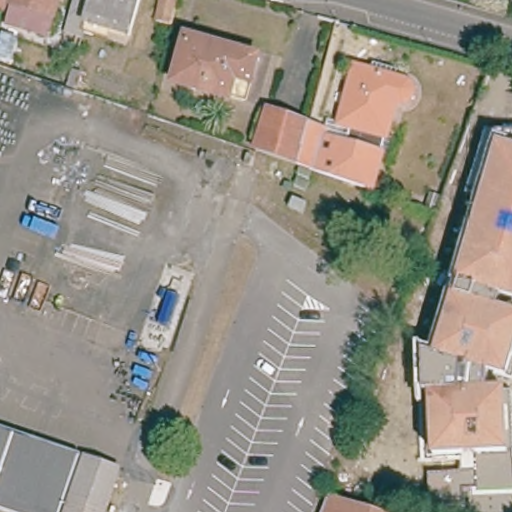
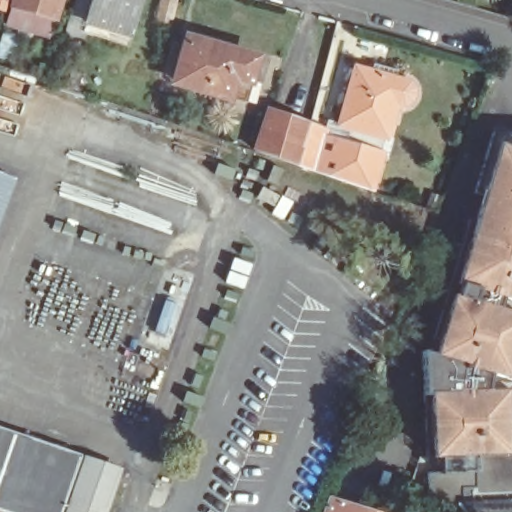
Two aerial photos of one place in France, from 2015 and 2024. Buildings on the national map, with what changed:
unchanged [(13,11),(0,8),(0,0),(16,0),(13,11)]
unchanged [(55,35),(16,24),(23,0),(66,0),(55,35)]
unchanged [(130,35),(88,23),(87,25),(83,26),(70,23),(77,0),(140,0),(130,35)]
unchanged [(173,24),(157,20),(163,0),(177,0),(179,0),(173,24)]
unchanged [(256,57),(244,100),(175,80),(186,37),(256,57)]
unchanged [(389,159),(380,158),(371,191),(297,167),(310,124),(325,128),(323,134),(336,138),(348,141),(352,127),(342,123),(357,69),(405,82),(410,88),(410,96),(406,103),(395,107),(387,136),(394,139),(389,159)]
unchanged [(270,113),(310,124),(297,167),(257,153),(270,113)]
unchanged [(493,306),(512,313),(512,361),(508,373),(488,367),(485,367),(485,386),(507,386),(510,445),(456,448),(423,450),(421,391),(421,390),(455,388),(456,359),(425,348),(443,291),(467,299),(471,284),(447,276),(465,217),(470,218),(475,200),(481,201),(485,190),(470,185),(486,128),(497,132),(510,132),(512,132),(512,298),(497,293),(493,306)]
new [(16,181),(0,223),(0,175),(16,181)]
unchanged [(448,364),(447,380),(431,380),(433,364),(448,364)]
unchanged [(0,502),(0,432),(26,440),(80,459),(62,506),(61,506),(60,512),(31,512),(26,510),(0,502)]
unchanged [(119,472),(105,512),(68,512),(85,461),(119,472)]
unchanged [(377,512),(321,512),(327,496),(377,512)]

